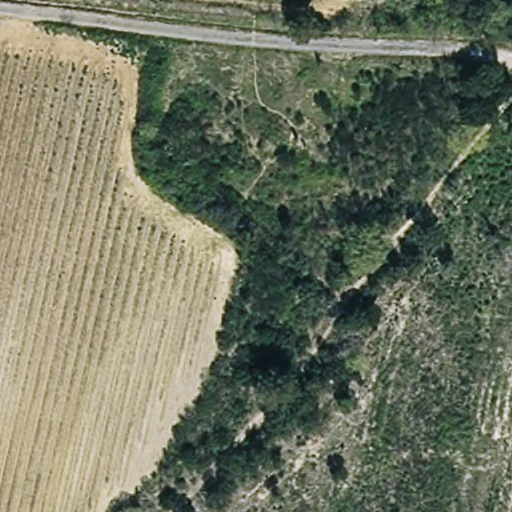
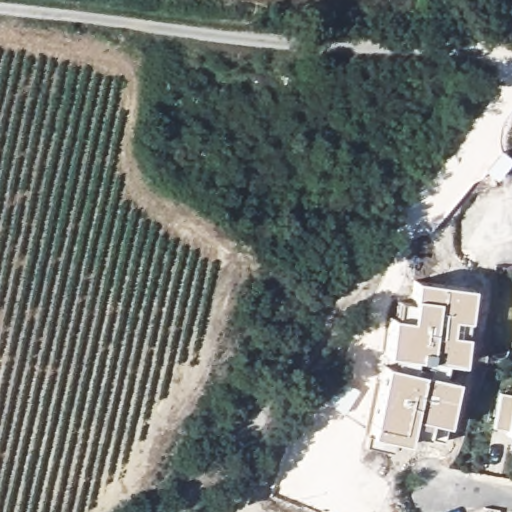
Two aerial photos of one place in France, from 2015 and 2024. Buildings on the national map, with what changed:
new [(392,367),(394,355),(384,354),(389,317),(393,317),(396,300),(411,302),(412,297),(413,279),(469,286),(465,320),(464,319),(461,334),(464,334),(460,364),(443,361),(440,375),(454,378),(443,424),(439,423),(439,438),(425,433),(424,436),(407,431),(404,442),(389,439),(388,448),(361,443),(363,433),(369,434),(384,366),(392,367)]
new [(499,395),(512,397),(512,437),(506,436),(506,431),(494,428),(499,395)]

